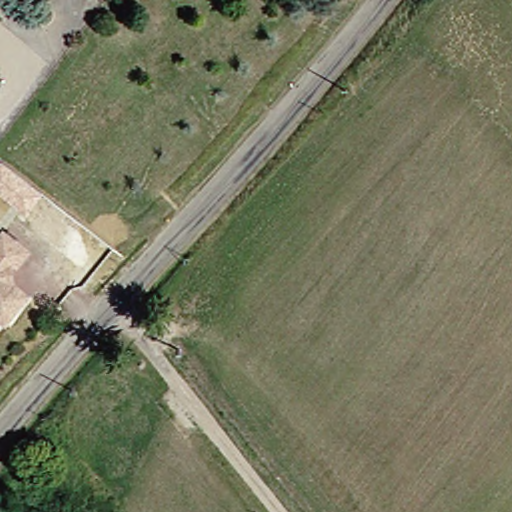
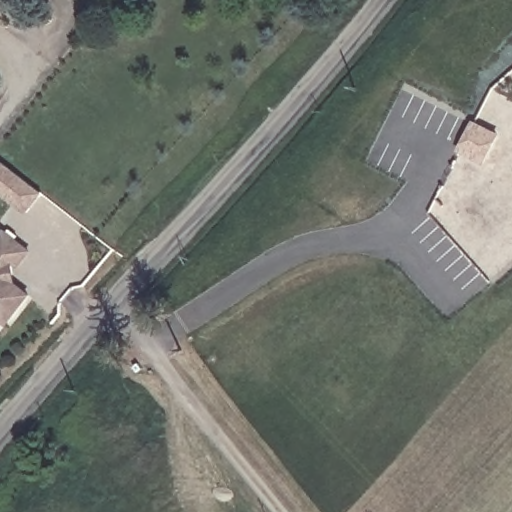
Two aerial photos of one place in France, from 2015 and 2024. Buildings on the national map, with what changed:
new [(470,122),(493,134),(488,144),(480,162),(456,150),(465,133),(470,122)]
unchanged [(25,215),(0,195),(0,161),(43,194),(25,215)]
unchanged [(19,250),(6,265),(1,262),(0,263),(0,235),(19,250)]
unchanged [(16,294),(0,314),(0,280),(16,294)]

